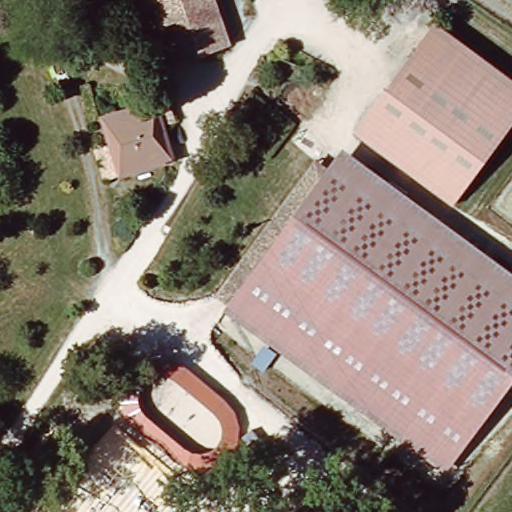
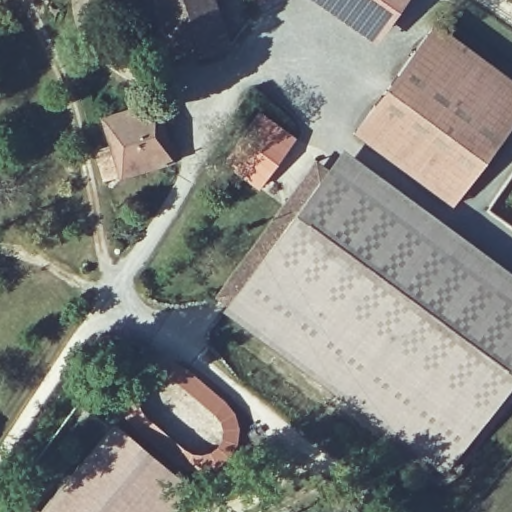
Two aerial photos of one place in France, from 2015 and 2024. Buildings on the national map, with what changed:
unchanged [(218,44),(160,63),(141,0),(205,0),(218,44)]
new [(374,42),(313,0),(405,0),(374,42)]
unchanged [(512,127),(454,209),(353,135),(435,26),(512,81),(512,127)]
unchanged [(112,180),(94,118),(147,102),(165,161),(112,180)]
new [(223,163),(258,111),(294,137),(257,187),(223,163)]
unchanged [(512,381),(443,476),(221,309),(341,146),(512,269),(512,381)]
new [(192,488),(172,512),(39,512),(115,422),(192,488)]

